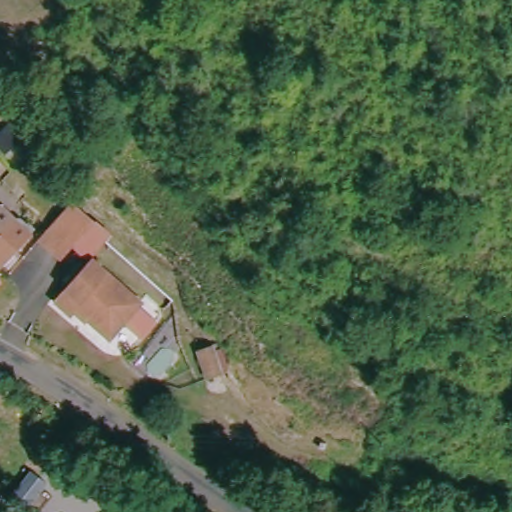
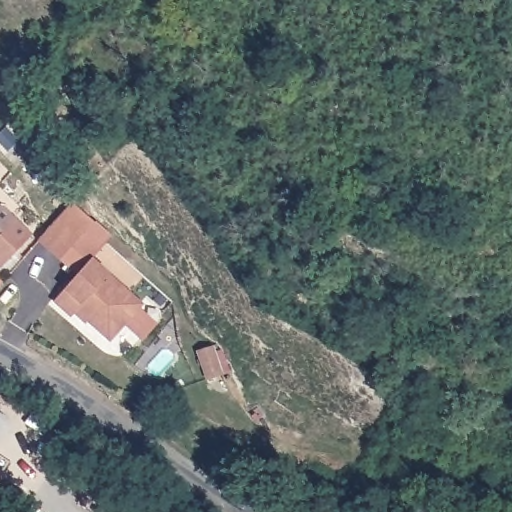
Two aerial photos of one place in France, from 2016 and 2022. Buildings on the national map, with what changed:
unchanged [(20,175),(0,157),(0,144),(16,125),(42,150),(20,175)]
unchanged [(41,235),(9,265),(7,263),(0,256),(0,194),(35,230),(41,235)]
unchanged [(78,204),(101,224),(69,260),(47,241),(78,204)]
unchanged [(114,345),(104,337),(81,316),(76,322),(58,308),(95,264),(136,299),(147,308),(114,345)]
unchanged [(6,275),(0,282),(0,270),(1,270),(6,275)]
unchanged [(212,343),(222,371),(222,372),(221,372),(208,377),(198,347),(212,343)]

